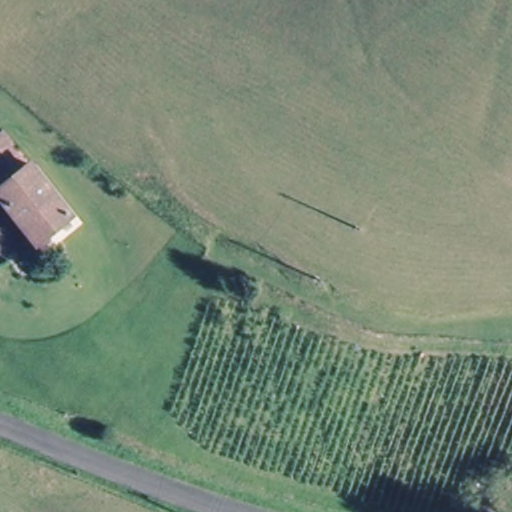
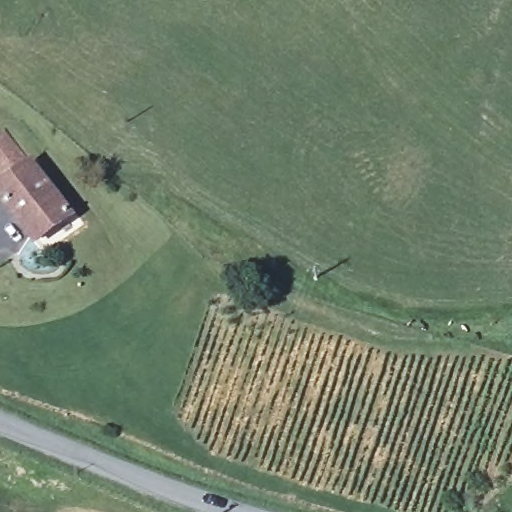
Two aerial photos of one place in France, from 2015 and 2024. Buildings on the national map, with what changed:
unchanged [(0,200),(0,192),(8,187),(0,175),(0,144),(9,137),(72,219),(35,246),(0,200)]

